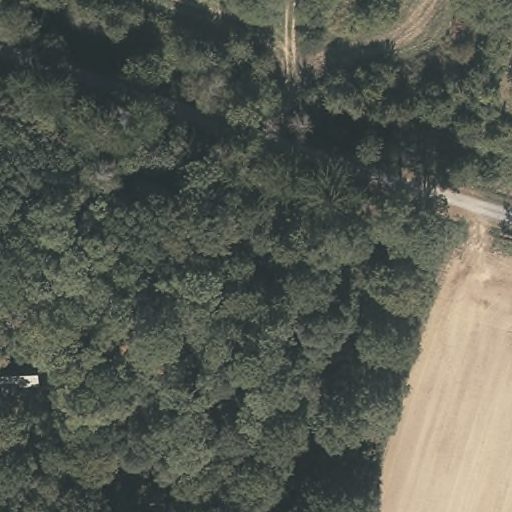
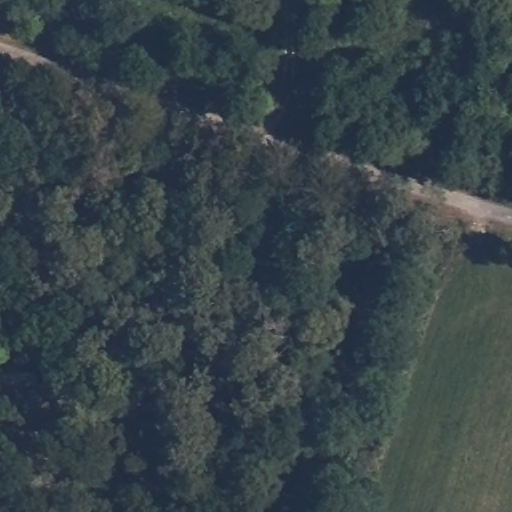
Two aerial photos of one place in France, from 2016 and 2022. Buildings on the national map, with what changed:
unchanged [(37,357),(39,378),(0,380),(0,361),(37,357)]

